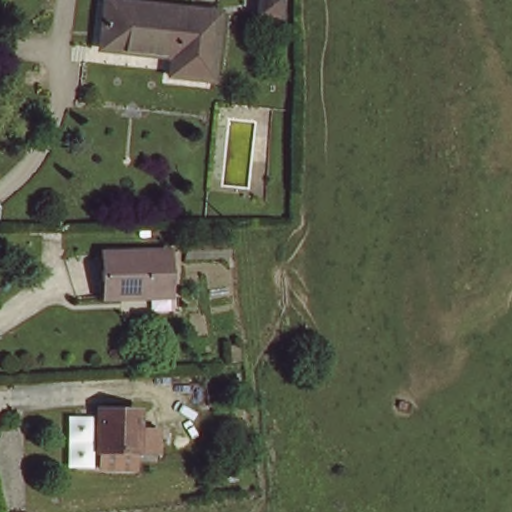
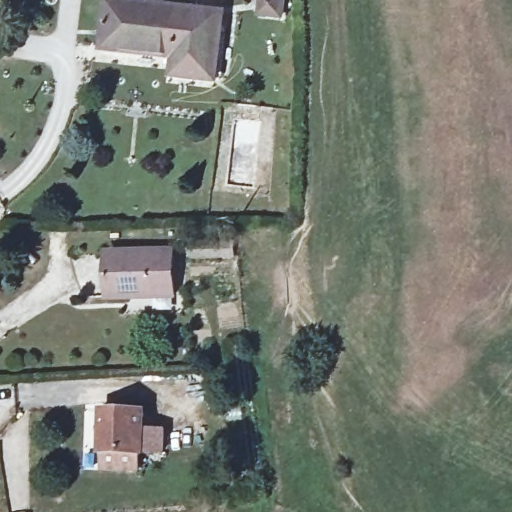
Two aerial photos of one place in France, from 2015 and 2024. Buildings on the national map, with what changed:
unchanged [(210,78),(170,75),(170,53),(100,49),(107,0),(123,0),(216,9),(210,78)]
unchanged [(261,9),(262,0),(283,0),(281,11),(261,9)]
unchanged [(140,295),(107,298),(103,252),(172,250),(175,284),(175,293),(140,295)]
unchanged [(100,466),(100,449),(98,449),(96,409),(137,408),(138,424),(156,423),(160,447),(137,448),(137,464),(100,466)]

